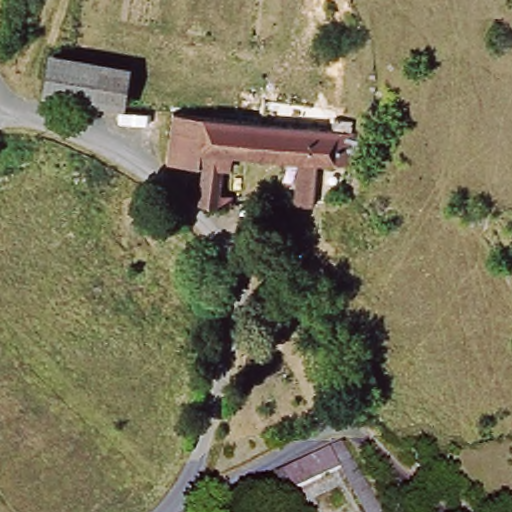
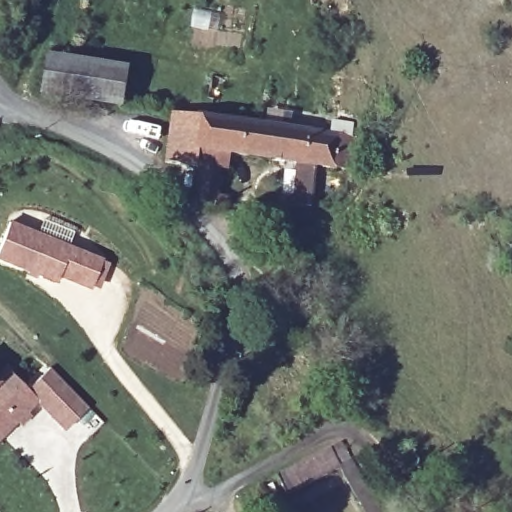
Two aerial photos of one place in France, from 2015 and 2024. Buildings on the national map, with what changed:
unchanged [(124,113),(46,95),(54,60),(130,73),(124,113)]
unchanged [(202,170),(165,165),(171,113),(340,137),(341,124),(358,126),(353,175),(315,172),(312,212),(295,210),(299,168),(231,162),(230,178),(223,177),(219,213),(198,210),(202,170)]
new [(105,258),(92,290),(60,277),(58,283),(0,260),(0,250),(12,221),(105,258)]
new [(8,370),(27,388),(49,367),(89,410),(66,431),(37,403),(0,439),(0,378),(8,370)]
unchanged [(287,498),(277,479),(342,443),(383,512),(364,512),(342,469),(287,498)]

